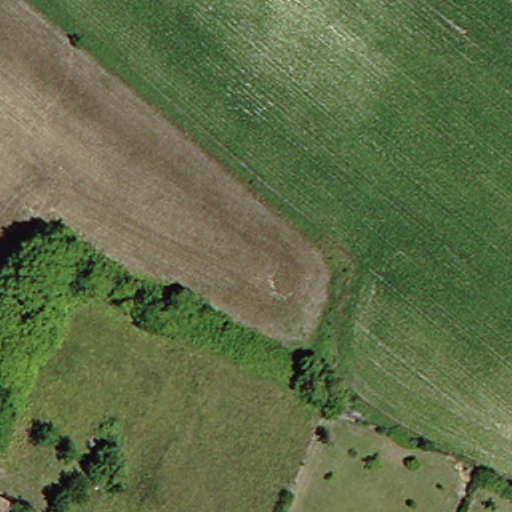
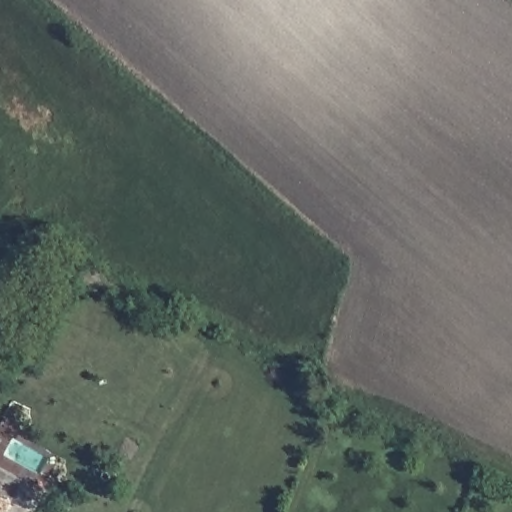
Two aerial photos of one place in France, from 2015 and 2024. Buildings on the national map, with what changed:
unchanged [(9,509),(8,512),(0,512),(0,503),(9,509)]

